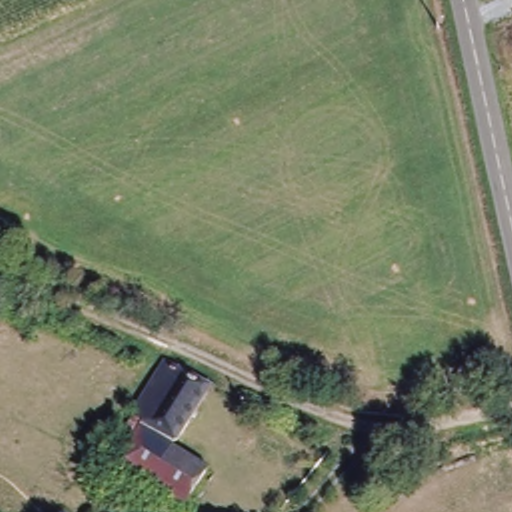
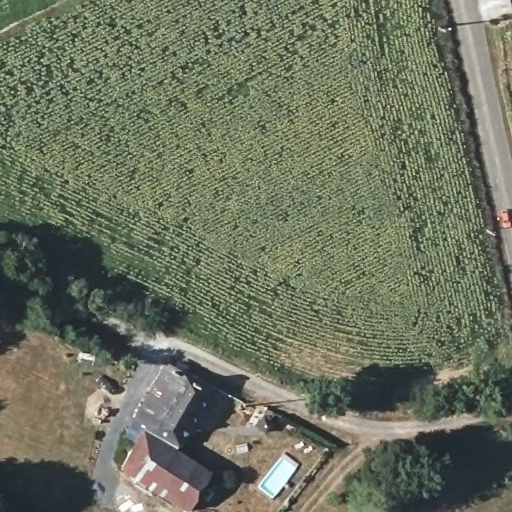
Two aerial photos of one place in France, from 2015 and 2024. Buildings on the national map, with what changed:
unchanged [(170,360),(176,364),(183,360),(188,361),(191,363),(194,373),(215,383),(178,448),(214,471),(190,511),(175,501),(120,468),(145,425),(132,418),(167,364),(170,360)]

